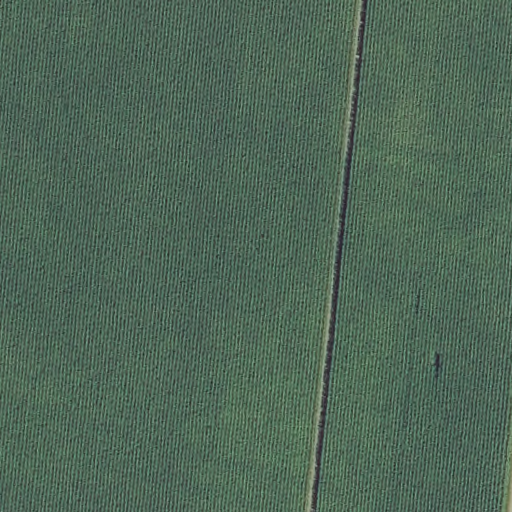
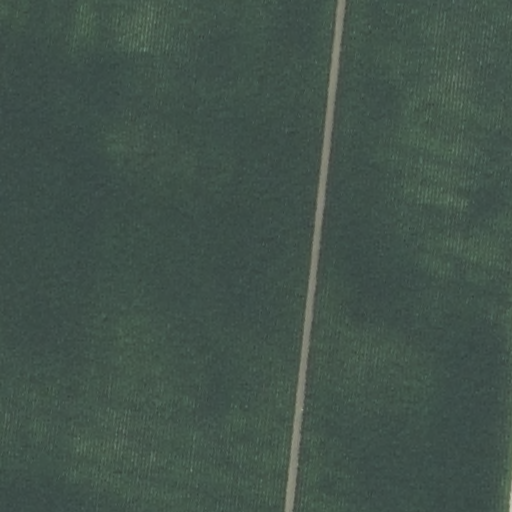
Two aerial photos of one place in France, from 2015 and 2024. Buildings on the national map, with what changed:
[]

